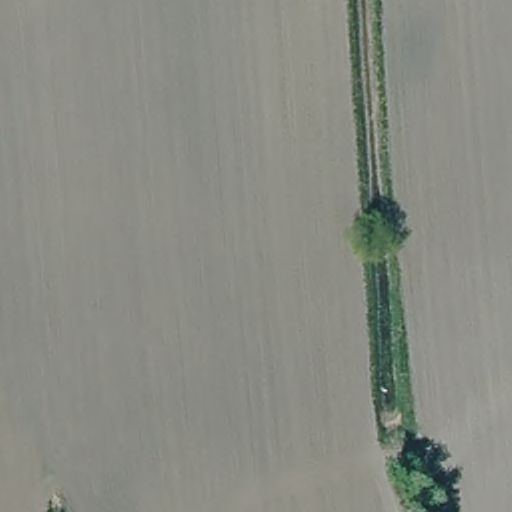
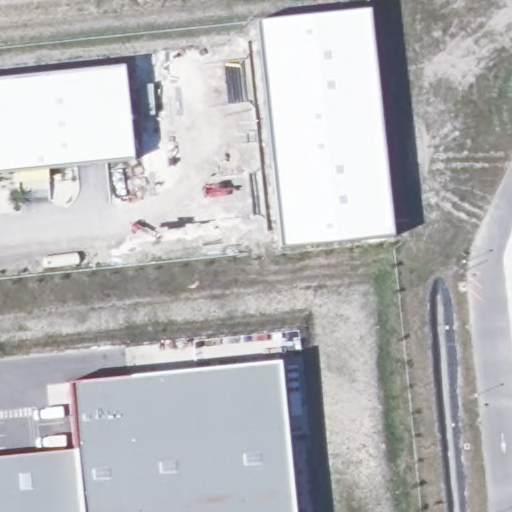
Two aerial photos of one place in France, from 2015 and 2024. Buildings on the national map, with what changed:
new [(369,10),(392,235),(280,250),(255,21),(369,10)]
new [(132,160),(0,173),(0,79),(123,64),(132,160)]
new [(67,383),(278,363),(293,512),(0,512),(0,459),(73,452),(67,383)]

